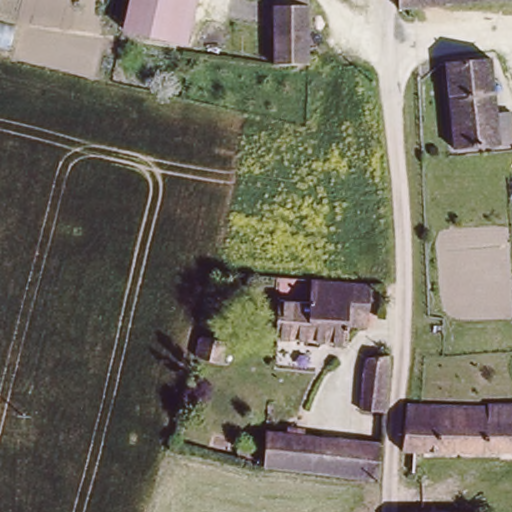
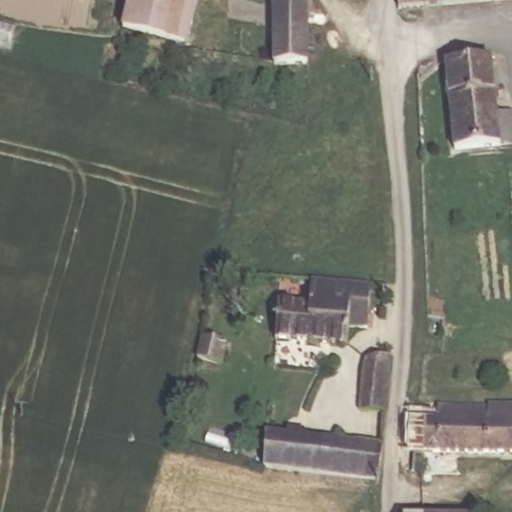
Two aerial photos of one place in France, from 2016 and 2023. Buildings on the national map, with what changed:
unchanged [(125,26),(131,0),(190,0),(179,41),(125,26)]
unchanged [(282,66),(278,9),(277,0),(311,0),(313,7),(315,7),(320,64),(282,66)]
unchanged [(512,0),(512,2),(399,12),(398,0),(512,0)]
unchanged [(493,64),(498,105),(512,105),(512,147),(460,154),(450,67),(493,64)]
unchanged [(311,277),(368,282),(368,298),(368,327),(350,326),(350,345),(277,337),(278,301),(280,301),(311,302),(311,295),(311,277)]
unchanged [(202,336),(218,340),(221,341),(227,341),(222,361),(197,357),(202,336)]
unchanged [(389,376),(386,411),(365,408),(368,359),(390,360),(389,376)]
unchanged [(407,413),(482,410),(482,404),(512,404),(512,456),(422,456),(421,476),(402,476),(407,413)]
unchanged [(380,483),(267,467),(271,431),(383,443),(380,483)]

